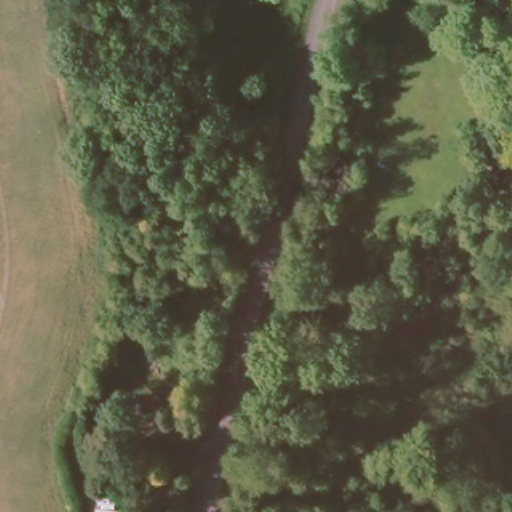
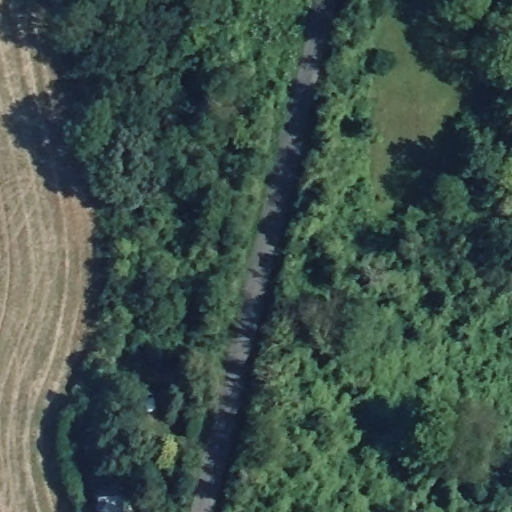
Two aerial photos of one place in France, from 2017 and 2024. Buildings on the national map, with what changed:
unchanged [(128,502),(128,512),(97,512),(98,501),(128,502)]

